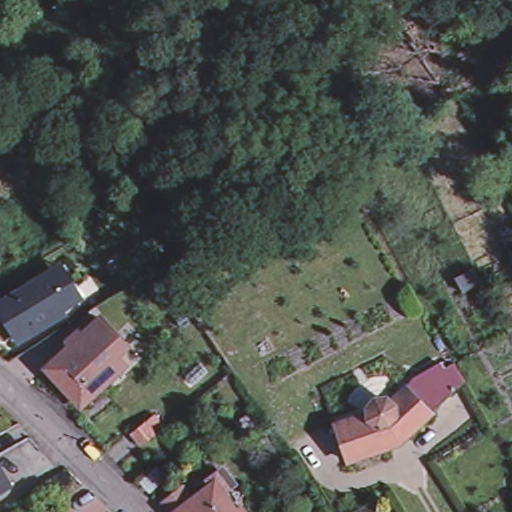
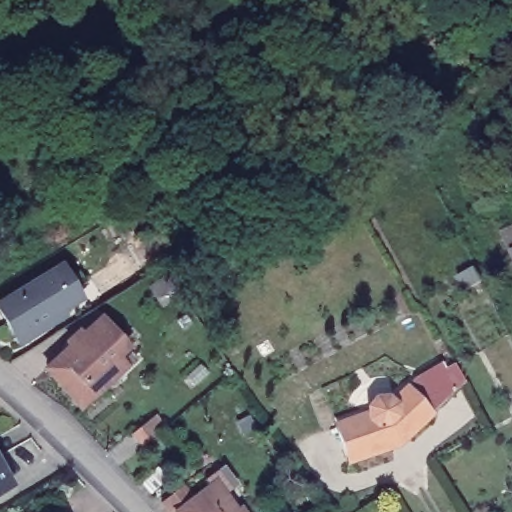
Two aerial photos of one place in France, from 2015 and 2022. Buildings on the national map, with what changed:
unchanged [(497,280),(480,290),(473,276),(490,267),(497,280)]
unchanged [(20,346),(16,340),(0,316),(0,307),(53,275),(62,270),(71,285),(81,301),(61,313),(65,319),(20,346)]
unchanged [(37,372),(75,341),(74,340),(93,323),(117,350),(105,360),(117,375),(110,380),(74,411),(37,372)]
unchanged [(330,425),(362,410),(367,389),(391,394),(460,360),(470,383),(395,455),(345,465),(330,425)]
unchanged [(150,440),(172,420),(182,433),(160,451),(150,440)]
unchanged [(15,483),(0,492),(0,458),(15,483)]
unchanged [(166,511),(189,496),(199,510),(214,498),(208,490),(222,480),(237,500),(229,506),(233,512),(166,512),(166,511)]

